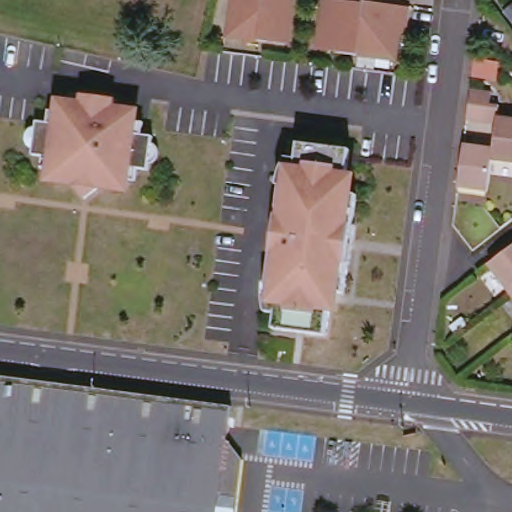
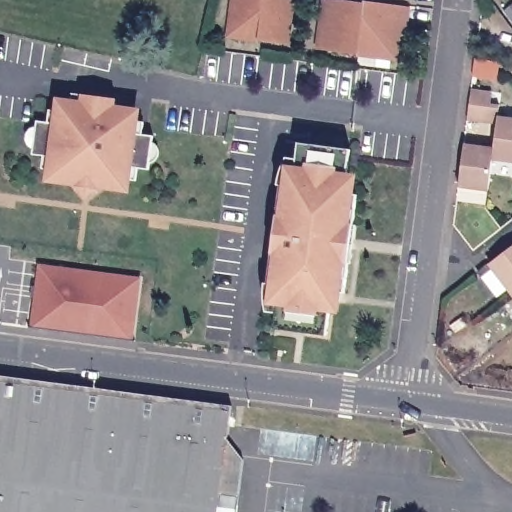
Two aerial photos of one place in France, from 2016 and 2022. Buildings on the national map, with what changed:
unchanged [(232,0),(300,0),(292,49),(263,45),(226,40),(230,10),(232,0)]
unchanged [(340,51),(322,48),(329,0),(340,0),(368,4),(369,3),(415,9),(412,26),(410,35),(405,34),(400,61),(340,53),(340,51)]
unchanged [(475,56),(500,61),(497,78),(472,75),(475,56)]
unchanged [(471,119),(473,103),(475,88),(496,91),(495,106),(503,107),(502,116),(512,117),(512,160),(497,158),(498,147),(501,123),(471,119)]
unchanged [(95,201),(80,182),(60,180),(60,172),(50,171),(51,159),(41,158),(40,158),(41,151),(40,151),(39,151),(38,150),(37,150),(36,149),(35,148),(34,147),(33,146),(33,145),(32,143),(32,141),(32,140),(33,138),(33,137),(35,135),(36,133),(37,133),(37,132),(38,132),(40,131),(41,131),(42,131),(43,131),(45,124),(56,125),(57,112),(68,114),(69,106),(89,108),(90,96),(101,98),(100,105),(112,106),(113,99),(124,101),(123,112),(143,114),(142,122),(152,124),(150,136),(161,137),(161,144),(162,144),(163,145),(165,145),(165,146),(166,146),(167,146),(167,148),(168,149),(169,151),(170,151),(170,153),(170,155),(170,156),(169,156),(168,158),(168,159),(166,161),(165,161),(165,162),(164,163),(163,163),(161,164),(160,164),(158,164),(157,171),(147,170),(146,182),(135,181),(134,189),(95,184),(103,195),(95,201)]
unchanged [(468,144),(498,147),(497,158),(493,190),(463,185),(468,144)]
unchanged [(270,286),(272,287),(275,267),(275,265),(275,263),(275,262),(274,260),(275,259),(275,258),(275,257),(275,256),(275,255),(275,254),(275,253),(275,252),(276,252),(276,251),(276,250),(277,248),(280,226),(280,225),(280,224),(280,223),(280,221),(280,219),(280,218),(280,217),(280,216),(280,215),(280,213),(280,212),(281,211),(281,209),(282,208),(285,187),(282,187),(284,172),(290,160),(300,161),(302,145),(355,152),(351,181),(355,181),(354,196),(361,197),(357,228),(360,228),(355,266),(352,266),(349,296),(341,295),(340,310),(335,310),(331,338),(279,332),(281,316),(271,315),(267,301),(270,286)]
unchanged [(489,268),(512,250),(512,294),(510,295),(489,268)]
new [(39,265),(140,278),(132,339),(31,325),(39,265)]
unchanged [(512,294),(512,297),(510,295),(512,294)]
unchanged [(234,411),(230,441),(247,464),(242,512),(0,512),(0,381),(234,411)]

